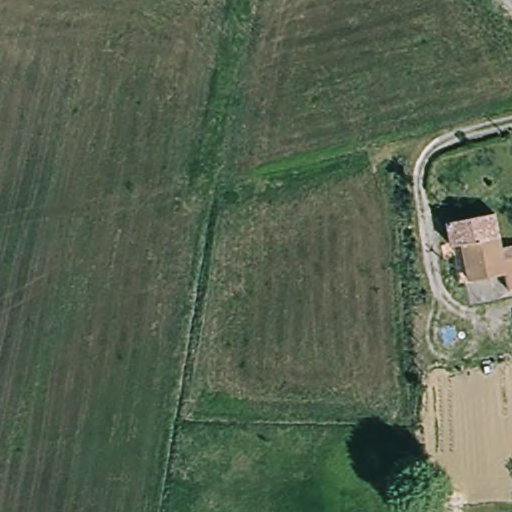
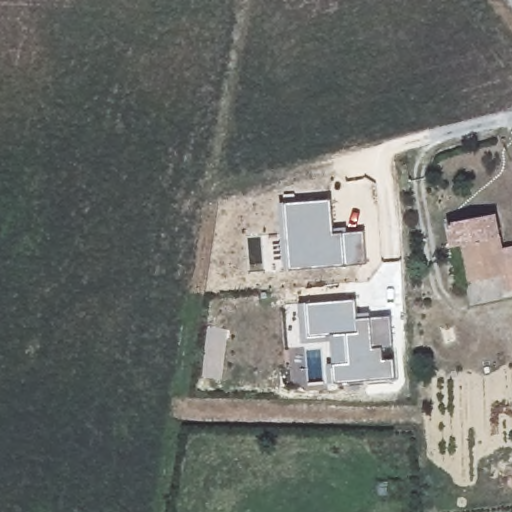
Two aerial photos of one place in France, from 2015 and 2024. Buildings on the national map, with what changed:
new [(283,235),(281,200),(328,197),(331,232),(362,229),(364,262),(292,268),(286,268),(283,235)]
unchanged [(505,275),(474,281),(466,245),(452,248),(447,224),(494,214),(501,249),(512,247),(512,291),(508,292),(505,275)]
new [(330,344),(299,346),(296,300),(303,300),(354,296),(356,315),(390,313),(392,346),(382,347),(383,358),(393,357),(395,377),(333,382),(326,383),(325,364),(331,363),(330,344)]

